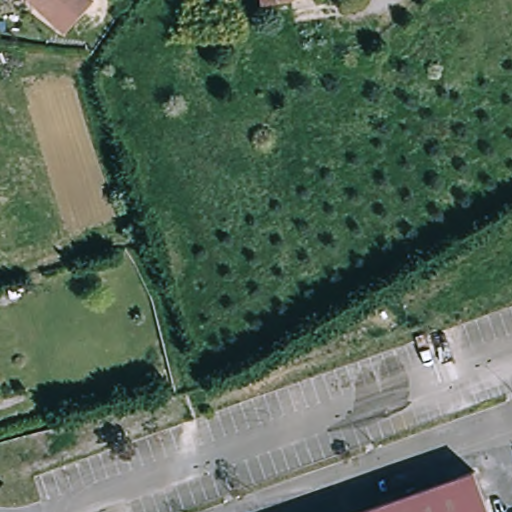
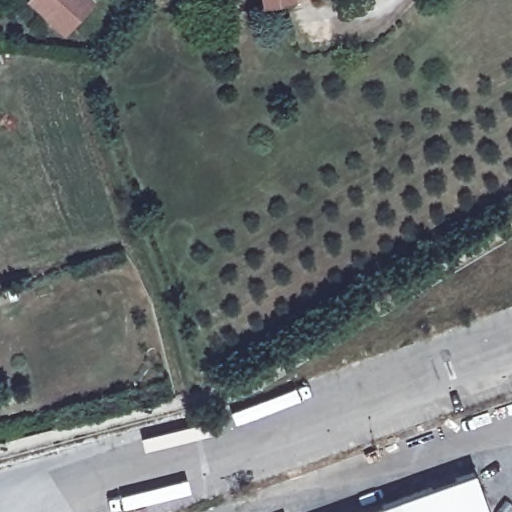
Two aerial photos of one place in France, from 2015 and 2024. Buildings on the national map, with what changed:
unchanged [(64,34),(26,0),(91,0),(92,2),(64,34)]
unchanged [(266,5),(265,0),(295,0),(266,5)]
unchanged [(488,512),(360,512),(473,472),(488,512)]

